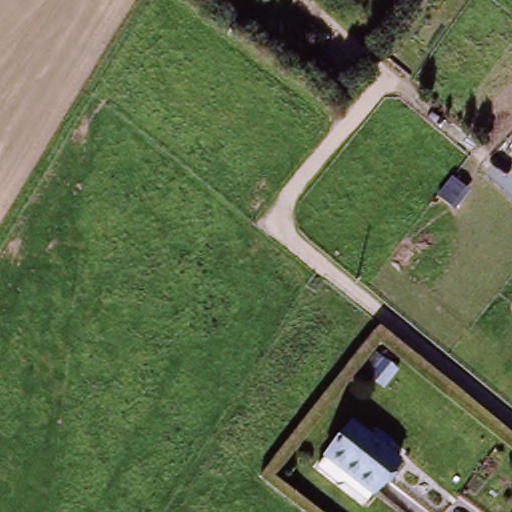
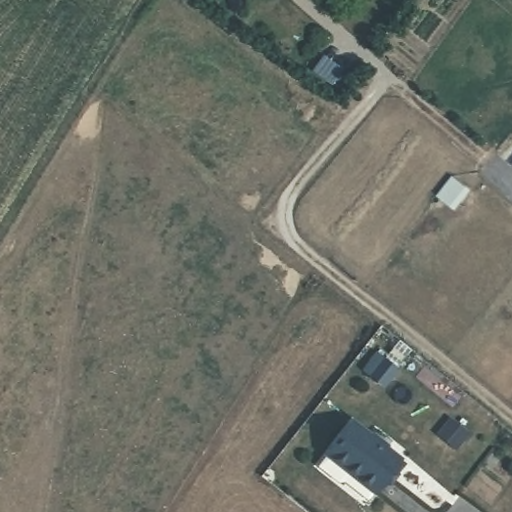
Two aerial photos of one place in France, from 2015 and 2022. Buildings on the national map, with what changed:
unchanged [(357,390),(337,375),(351,358),(371,374),(357,390)]
unchanged [(317,461),(327,449),(355,418),(370,431),(377,423),(387,431),(380,440),(398,456),(373,488),(367,497),(345,479),(338,480),(317,461)]

